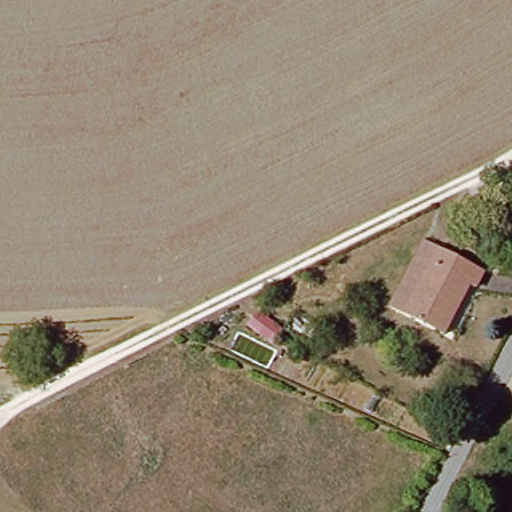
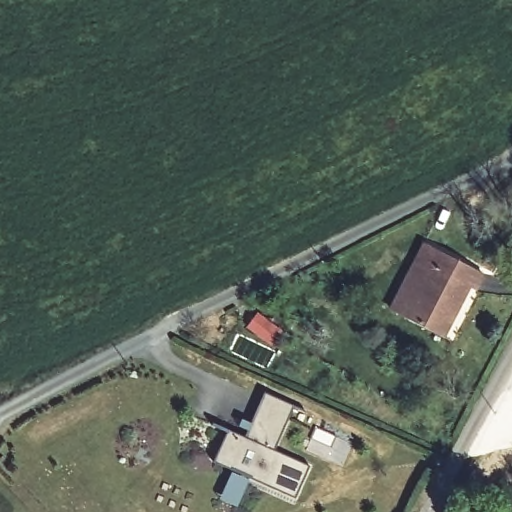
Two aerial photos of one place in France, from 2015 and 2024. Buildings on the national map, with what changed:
unchanged [(391,311),(430,241),(441,247),(402,318),(391,311)]
unchanged [(487,272),(475,293),(472,291),(445,341),(402,318),(441,247),(487,272)]
unchanged [(235,331),(243,320),(268,337),(262,346),(259,350),(247,340),(235,331)]
new [(295,407),(276,450),(311,467),(297,498),(251,477),(237,508),(220,500),(233,470),(215,464),(229,432),(246,439),(265,394),(295,407)]

